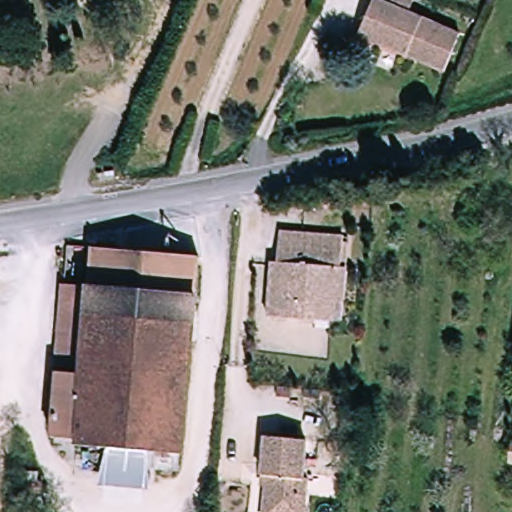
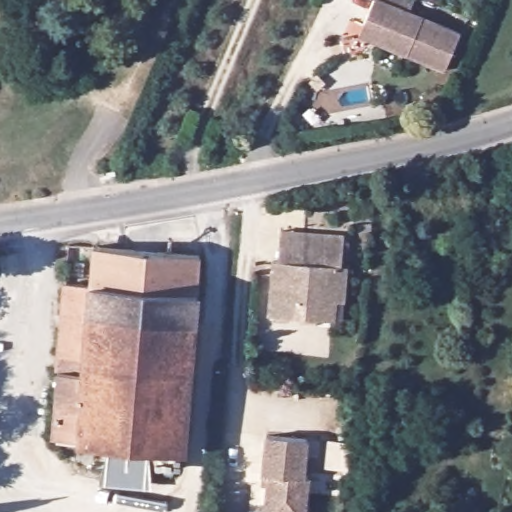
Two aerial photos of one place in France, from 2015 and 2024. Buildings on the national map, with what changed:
unchanged [(422,11),(466,28),(449,74),(375,46),(378,38),(368,35),(379,7),(368,3),(369,0),(425,0),(422,11)]
unchanged [(342,296),(332,295),(331,315),(321,315),(267,312),(269,257),(275,258),(276,226),(300,228),(340,230),(338,261),(345,261),(342,296)]
unchanged [(91,290),(93,251),(200,258),(186,456),(182,456),(181,472),(150,470),(150,451),(111,451),(80,449),(80,444),(56,442),(66,289),(91,290)]
unchanged [(270,478),(264,477),(266,438),(307,440),(305,478),(310,478),(308,512),(268,512),(268,511),(270,478)]
unchanged [(150,451),(150,470),(149,485),(130,484),(131,481),(110,480),(111,451),(150,451)]
unchanged [(49,475),(48,490),(32,490),(32,475),(49,475)]

